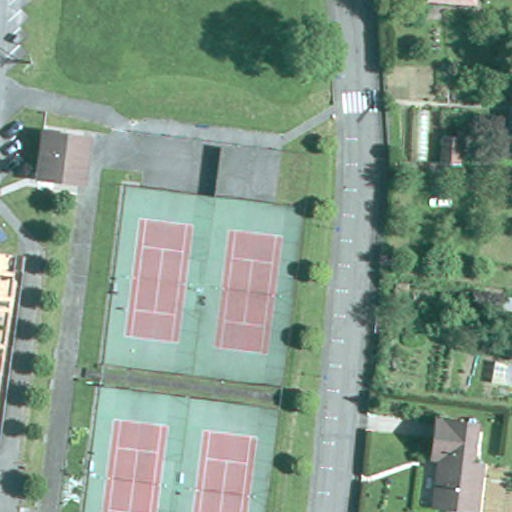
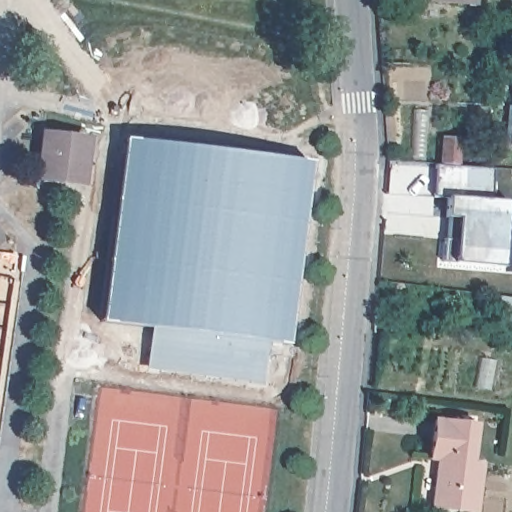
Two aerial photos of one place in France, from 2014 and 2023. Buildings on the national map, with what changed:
unchanged [(472,1),(467,0),(472,0),(472,1)]
unchanged [(42,132),(85,138),(79,177),(37,171),(42,132)]
unchanged [(442,163),(443,137),(459,139),(457,164),(442,163)]
new [(125,141),(310,164),(289,347),(270,345),(264,387),(143,367),(147,328),(104,320),(125,141)]
new [(445,237),(447,237),(446,217),(447,198),(435,196),(437,165),(494,169),(490,199),(510,201),(505,267),(456,262),(442,262),(445,237)]
unchanged [(472,462),(484,463),(477,512),(432,506),(437,466),(440,466),(441,457),(432,457),(435,417),(477,423),(472,462)]

